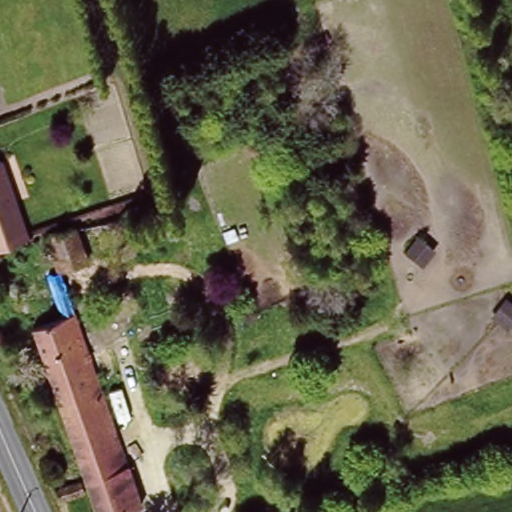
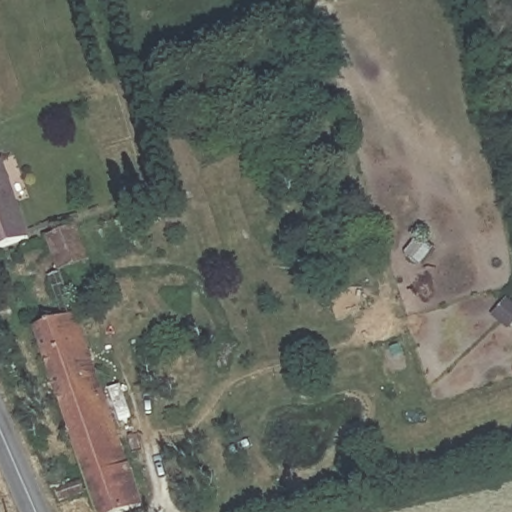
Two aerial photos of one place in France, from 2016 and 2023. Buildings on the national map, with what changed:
unchanged [(0,245),(0,173),(21,239),(0,245)]
unchanged [(77,228),(89,264),(60,273),(47,236),(77,228)]
unchanged [(59,274),(70,306),(55,312),(44,278),(59,274)]
unchanged [(135,508),(124,512),(91,512),(30,330),(70,316),(135,508)]

